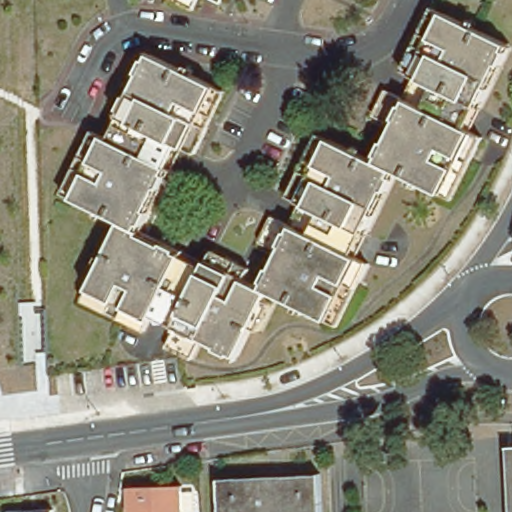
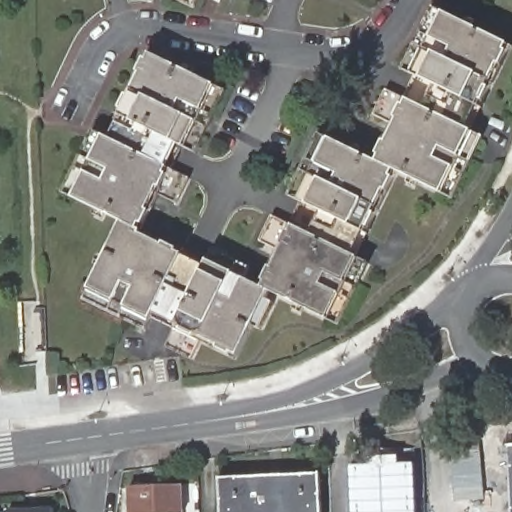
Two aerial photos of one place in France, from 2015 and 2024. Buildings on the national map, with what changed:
unchanged [(184,0),(190,0),(189,2),(184,0)]
unchanged [(195,147),(184,142),(172,166),(187,174),(175,199),(158,190),(139,229),(163,240),(164,238),(177,245),(176,248),(205,262),(207,256),(232,268),(222,288),(233,294),(244,275),(262,283),(266,277),(263,276),(270,262),(272,263),(284,241),(282,239),(287,226),(290,227),(292,222),(310,230),(321,206),(308,199),(320,175),(332,182),(337,171),(317,160),(328,135),(377,157),(380,152),(377,150),(383,137),(386,137),(397,114),(395,112),(401,99),(404,101),(407,95),(423,102),(434,81),(413,71),(425,46),(446,55),(451,44),(431,34),(444,7),(508,39),(505,46),(507,47),(501,61),(497,59),(477,101),(481,103),(470,126),(483,132),(452,194),(393,165),(391,172),(393,173),(387,186),(384,184),(362,227),(367,230),(357,252),(368,257),(337,320),(268,287),(265,295),(272,299),(259,325),(252,321),(237,350),(232,347),(231,350),(219,343),(220,341),(201,332),(191,353),(165,341),(171,327),(150,316),(145,325),(83,295),(123,216),(62,185),(92,126),(120,139),(131,116),(121,111),(141,69),(138,67),(144,55),(147,57),(150,51),(226,87),(195,147)]
unchanged [(508,448),(512,448),(512,512),(511,512),(508,448)]
new [(451,453),(481,451),(484,501),(455,502),(451,453)]
new [(350,463),(413,461),(416,512),(352,512),(350,463)]
unchanged [(321,512),(219,512),(217,476),(319,472),(321,512)]
unchanged [(129,484),(181,482),(181,512),(129,512),(129,484)]

